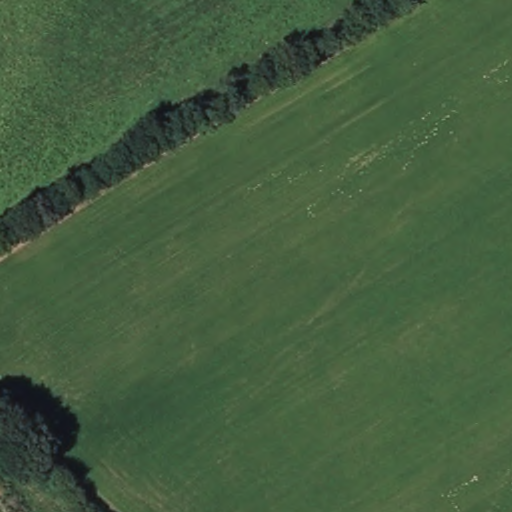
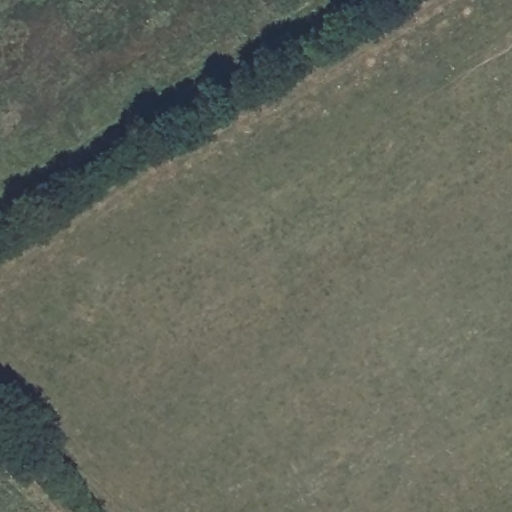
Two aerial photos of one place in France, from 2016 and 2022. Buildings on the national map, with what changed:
[]

